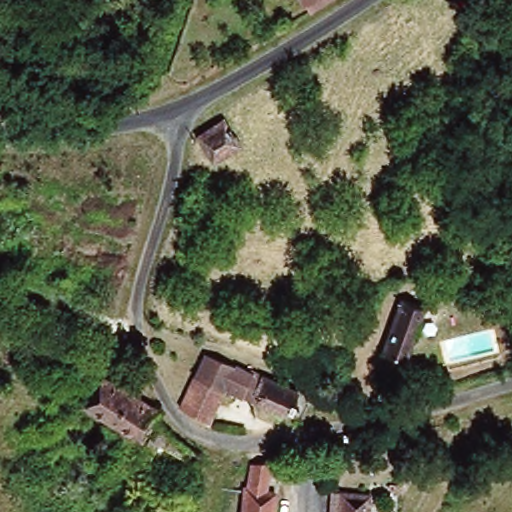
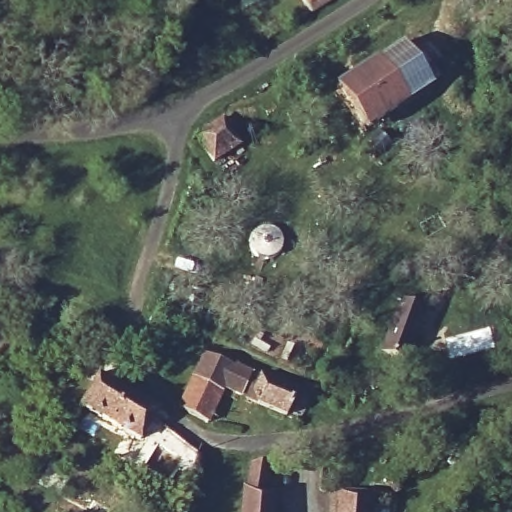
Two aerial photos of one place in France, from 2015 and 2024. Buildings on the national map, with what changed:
unchanged [(300,0),(339,0),(311,17),(300,0)]
new [(402,40),(433,87),(409,104),(377,56),(402,40)]
new [(377,56),(409,104),(365,131),(335,83),(377,56)]
unchanged [(219,168),(204,144),(205,142),(229,127),(245,153),(219,168)]
unchanged [(382,360),(403,305),(429,314),(408,370),(382,360)]
unchanged [(237,369),(221,403),(211,428),(183,413),(212,358),(237,369)]
unchanged [(97,373),(150,407),(132,439),(77,405),(97,373)]
unchanged [(287,423),(245,403),(258,374),(300,393),(287,423)]
unchanged [(450,422),(456,447),(431,453),(425,427),(450,422)]
unchanged [(159,482),(142,472),(137,471),(134,475),(125,469),(144,439),(157,447),(174,457),(159,482)]
unchanged [(246,470),(275,463),(273,477),(272,496),(270,512),(238,512),(241,486),(245,486),(246,470)]
unchanged [(330,501),(365,502),(368,503),(368,512),(330,512),(330,501)]

